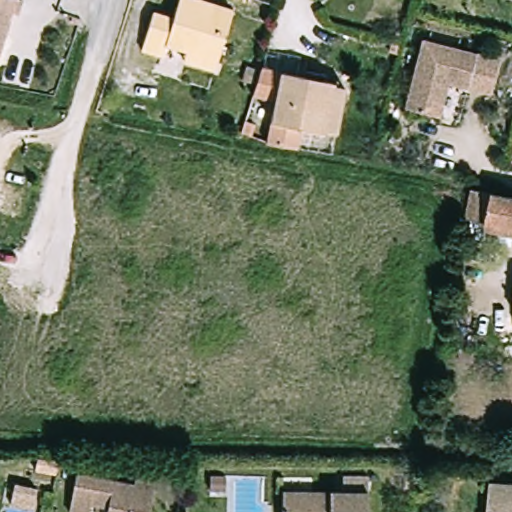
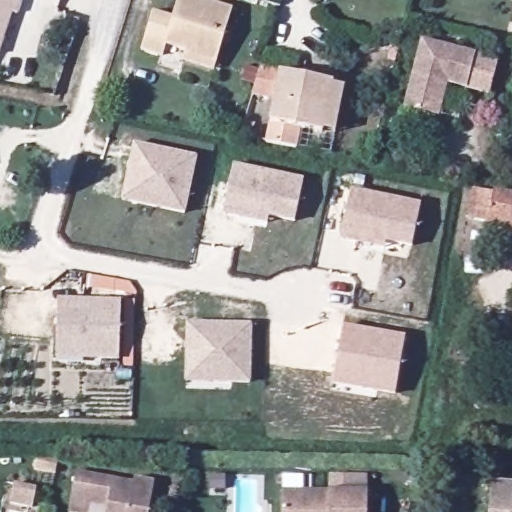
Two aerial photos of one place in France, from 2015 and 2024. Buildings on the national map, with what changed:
unchanged [(8,13),(0,37),(0,0),(18,0),(14,15),(8,13)]
unchanged [(185,50),(165,44),(161,55),(140,48),(152,11),(172,17),(177,0),(200,0),(232,10),(214,63),(212,69),(182,59),(185,50)]
unchanged [(427,112),(405,105),(423,40),(495,61),(487,90),(449,80),(439,115),(427,112)]
unchanged [(330,81),(330,84),(342,86),(334,132),(321,130),(299,129),(295,149),(274,145),(270,144),(278,102),(252,97),(254,89),(261,70),(297,76),(330,81)]
new [(198,157),(185,215),(121,201),(134,144),(198,157)]
new [(224,216),(235,163),(304,179),(296,222),(270,217),(268,225),(224,216)]
unchanged [(490,221),(470,218),(472,195),(474,188),(512,196),(512,229),(489,225),(490,221)]
new [(385,249),(341,240),(353,189),(422,204),(412,246),(387,241),(385,249)]
new [(122,300),(119,360),(56,359),(59,299),(122,300)]
new [(253,324),(252,385),(186,383),(187,324),(253,324)]
new [(395,395),(333,384),(343,325),(406,336),(395,395)]
unchanged [(55,475),(33,471),(37,456),(58,461),(55,475)]
unchanged [(136,480),(152,482),(157,484),(152,512),(108,512),(110,500),(93,497),(91,512),(73,512),(78,482),(80,475),(123,482),(134,485),(135,482),(136,480)]
unchanged [(492,483),(512,484),(512,512),(490,512),(492,483)]
unchanged [(282,490),(368,490),(368,512),(282,512),(282,490)]

